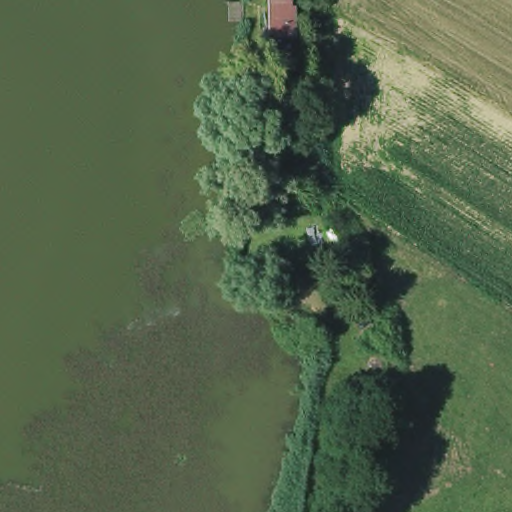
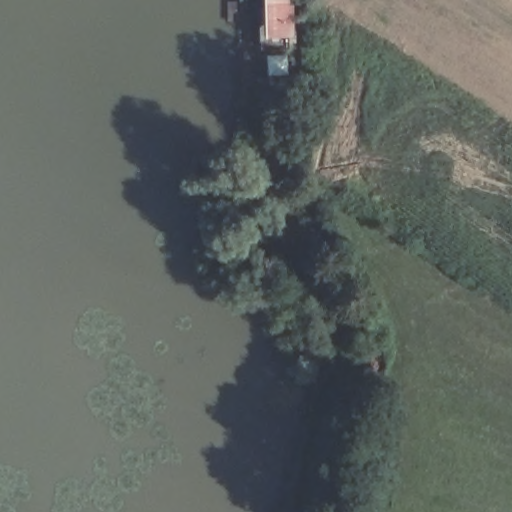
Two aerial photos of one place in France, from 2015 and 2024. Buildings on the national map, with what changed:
unchanged [(265,35),(262,35),(261,25),(267,26),(267,0),(288,0),(288,3),(294,4),(295,28),(287,28),(288,39),(265,38),(265,35)]

